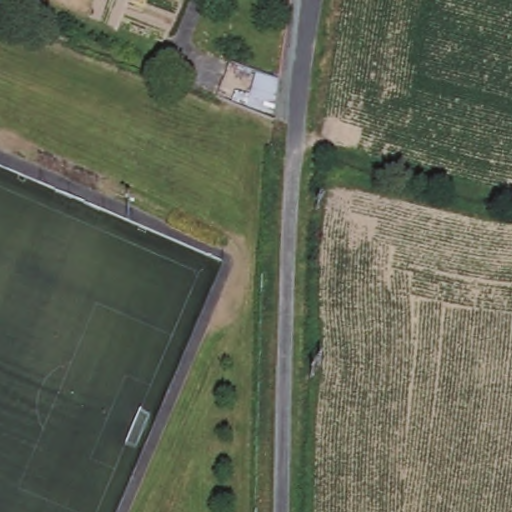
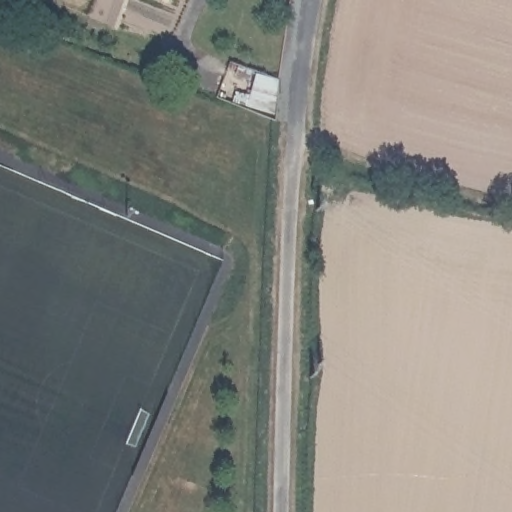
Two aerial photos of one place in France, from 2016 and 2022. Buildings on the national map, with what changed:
unchanged [(233,92),(247,95),(252,80),(226,71),(229,61),(281,80),(274,120),(229,106),(233,92)]

